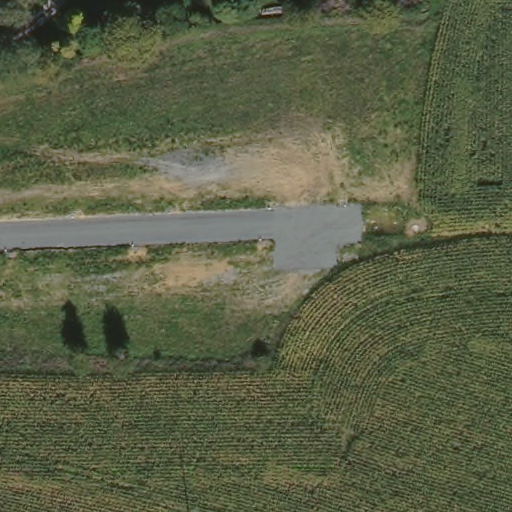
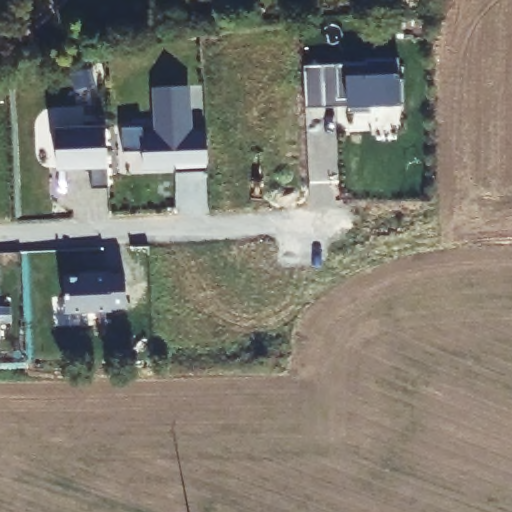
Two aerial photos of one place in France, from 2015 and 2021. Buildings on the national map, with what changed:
new [(333,67),(362,66),(362,62),(396,60),(397,81),(401,81),(402,107),(369,109),(369,116),(346,117),(345,111),(322,112),(303,112),(301,70),(320,68),(333,67)]
new [(142,150),(122,151),(121,127),(142,126),(142,132),(155,132),(152,87),(189,85),(192,130),(206,129),(209,170),(175,172),(175,167),(143,170),(142,150)]
new [(83,133),(83,127),(104,126),(107,195),(90,195),(89,173),(56,175),(54,135),(83,133)]
new [(88,276),(88,273),(107,273),(108,276),(123,275),(124,307),(109,308),(109,310),(63,312),(62,277),(88,276)]

